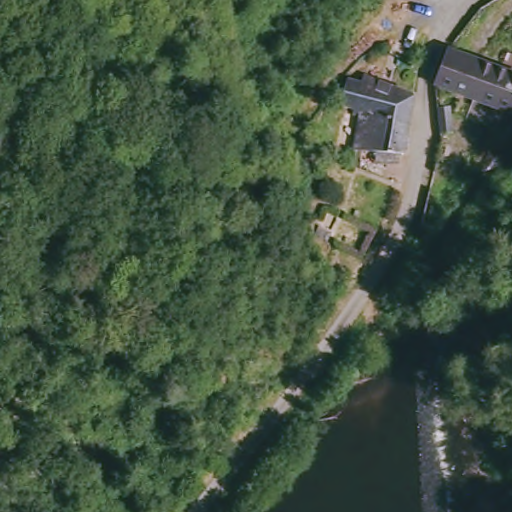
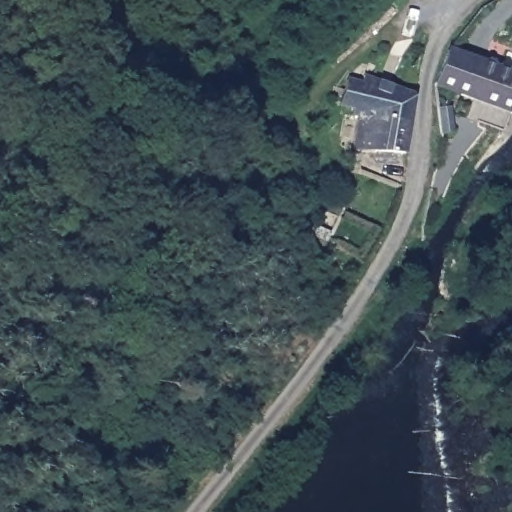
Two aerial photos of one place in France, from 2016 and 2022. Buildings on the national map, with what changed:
unchanged [(510,115),(430,90),(431,79),(443,42),(497,59),(502,47),(512,50),(512,110),(510,115)]
unchanged [(390,147),(374,139),(331,115),(349,77),(362,84),(369,72),(413,94),(390,147)]

